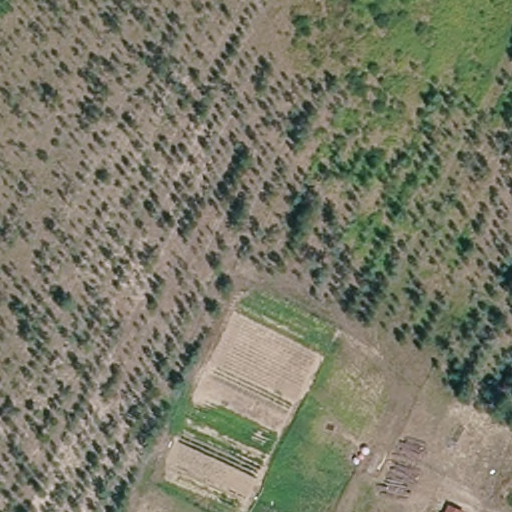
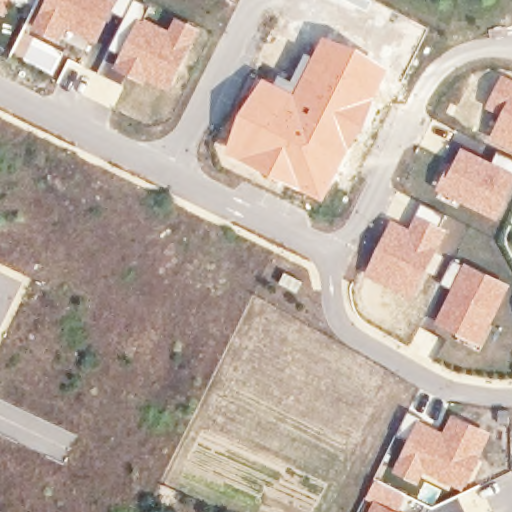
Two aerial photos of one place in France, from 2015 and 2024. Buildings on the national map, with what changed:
new [(0,13),(0,0),(15,0),(6,16),(0,13)]
new [(133,0),(124,18),(112,11),(94,44),(67,30),(60,42),(30,26),(44,0),(133,0)]
new [(366,12),(343,0),(372,0),(366,12)]
new [(138,16),(168,29),(175,16),(201,29),(168,93),(112,68),(138,16)]
new [(245,106),(263,77),(277,83),(282,74),(292,80),(306,52),(312,55),(323,34),(357,49),(391,68),(365,121),(323,200),(222,150),(245,106)]
new [(512,151),(487,139),(500,114),(484,106),(501,73),(512,78),(512,151)]
new [(512,170),(512,186),(498,220),(435,190),(461,147),(512,170)]
new [(391,219),(408,228),(421,203),(444,215),(439,225),(448,229),(412,300),(362,274),(391,219)]
new [(450,288),(440,283),(453,259),(511,284),(482,346),(433,323),(450,288)]
new [(286,273),(303,282),(298,293),(280,283),(286,273)]
new [(418,419),(442,431),(452,414),(491,432),(463,491),(423,473),(417,484),(392,471),(418,419)]
new [(365,498),(374,479),(406,495),(398,511),(402,512),(367,512),(372,501),(365,498)]

